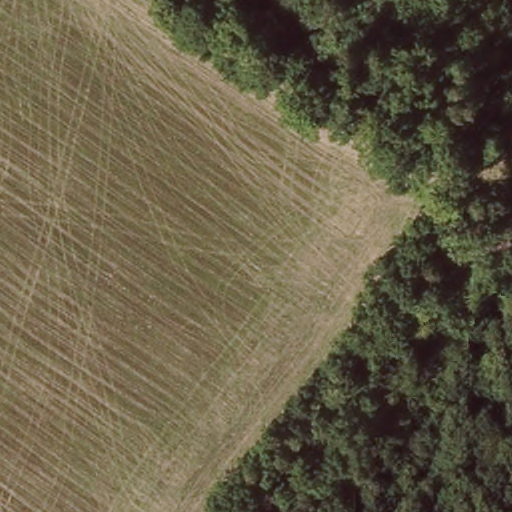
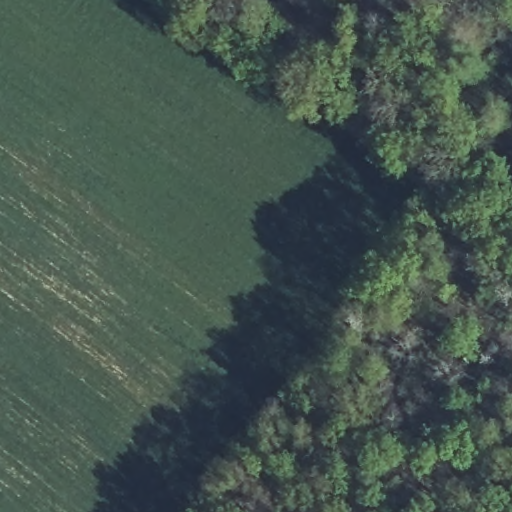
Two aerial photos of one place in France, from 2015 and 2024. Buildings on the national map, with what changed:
[]

